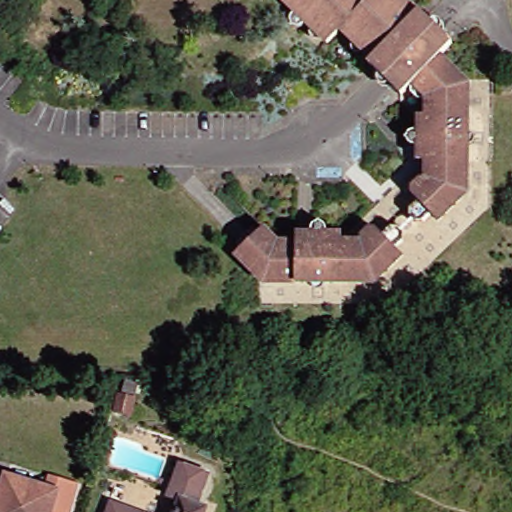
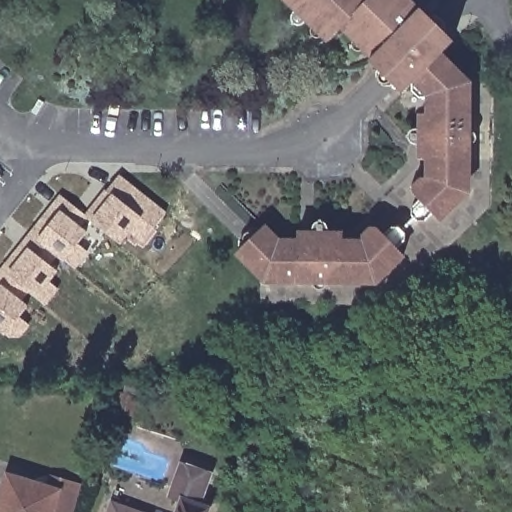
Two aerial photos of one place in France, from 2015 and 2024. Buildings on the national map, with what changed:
unchanged [(415,13),(416,12),(445,40),(393,90),(366,65),(369,61),(337,30),(323,44),(278,0),(277,0),(401,0),(415,13)]
unchanged [(457,79),(455,80),(456,82),(424,114),(424,97),(410,85),(399,95),(393,90),(445,40),(448,44),(435,57),(457,79)]
unchanged [(408,217),(407,210),(416,202),(409,195),(410,193),(409,186),(416,179),(423,180),(422,160),(415,160),(415,147),(413,147),(410,146),(407,144),(406,140),(406,137),(407,135),(409,132),(412,130),(416,130),(416,121),(420,117),(422,117),(424,117),(424,114),(456,82),(462,87),(461,116),(465,116),(464,162),(460,162),(460,190),(454,197),(456,201),(436,221),(429,215),(421,222),(413,223),(408,217)]
new [(106,194),(121,175),(168,212),(143,244),(129,234),(121,245),(90,220),(82,229),(88,234),(79,245),(90,253),(76,270),(54,253),(46,263),(58,272),(50,281),(60,290),(47,307),(30,293),(22,302),(29,308),(21,317),(32,326),(20,341),(7,335),(0,330),(0,271),(60,195),(90,219),(109,197),(106,194)]
unchanged [(375,280),(368,286),(338,286),(338,290),(295,290),(294,285),(266,285),(259,278),(255,282),(233,261),(260,234),(275,247),(294,248),(294,245),(295,240),(310,240),(310,232),(313,230),(316,229),(319,229),(322,230),(325,232),(325,240),(339,240),(339,245),(339,249),(359,249),(360,240),(366,234),(372,235),(373,234),(380,241),(389,234),(396,234),(402,240),(402,247),(393,255),(400,262),(380,283),(375,280)]
unchanged [(125,397),(139,401),(135,415),(121,411),(125,397)]
unchanged [(163,500),(175,468),(201,478),(190,508),(201,512),(171,512),(175,504),(163,500)]
unchanged [(52,481),(75,488),(67,512),(0,512),(0,483),(1,480),(48,495),(52,481)]
unchanged [(116,512),(104,512),(106,508),(116,512)]

